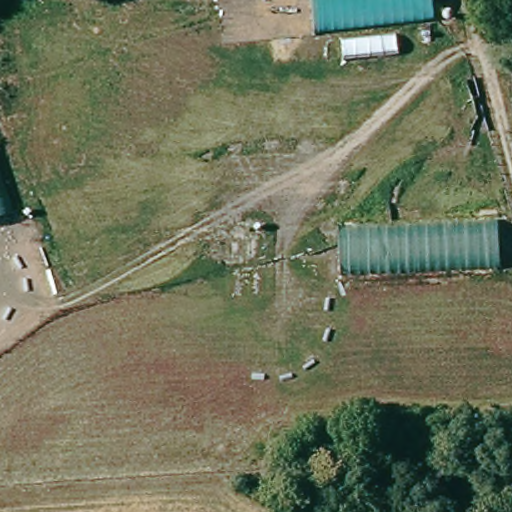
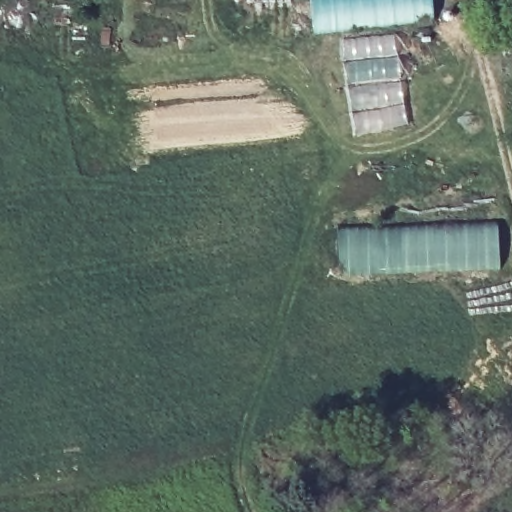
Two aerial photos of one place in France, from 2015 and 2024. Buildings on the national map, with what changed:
unchanged [(435,19),(313,33),(311,0),(433,0),(435,19)]
new [(394,34),(397,55),(342,61),(340,39),(394,34)]
new [(397,55),(400,80),(347,86),(342,61),(397,55)]
new [(400,80),(403,102),(350,111),(347,86),(400,80)]
new [(403,102),(407,124),(353,135),(350,111),(403,102)]
demolished [(0,217),(0,168),(14,212),(0,217)]
unchanged [(497,221),(500,268),(340,274),(338,226),(497,221)]

